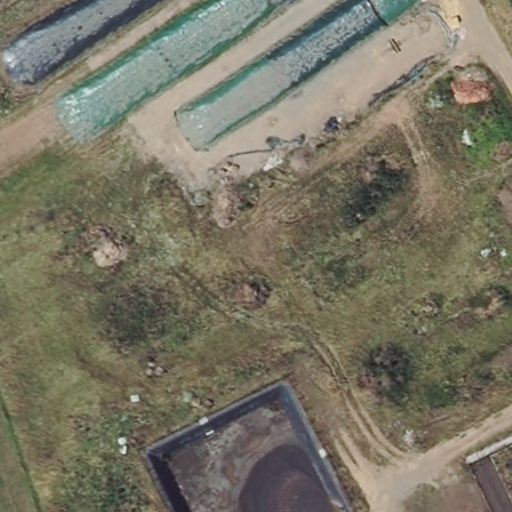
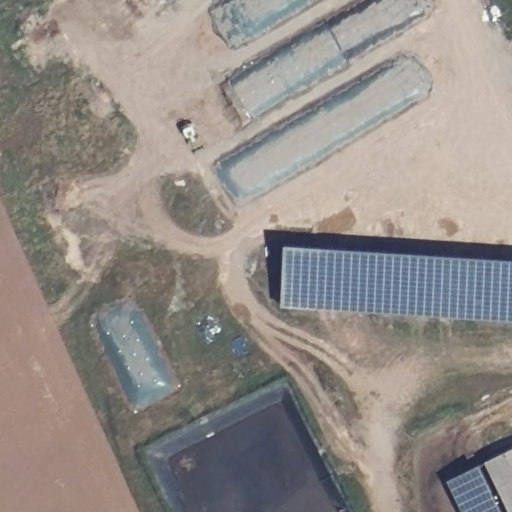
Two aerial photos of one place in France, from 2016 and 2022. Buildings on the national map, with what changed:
new [(512,252),(512,312),(283,302),(286,242),(512,252)]
unchanged [(512,447),(512,512),(466,512),(449,476),(512,447)]

